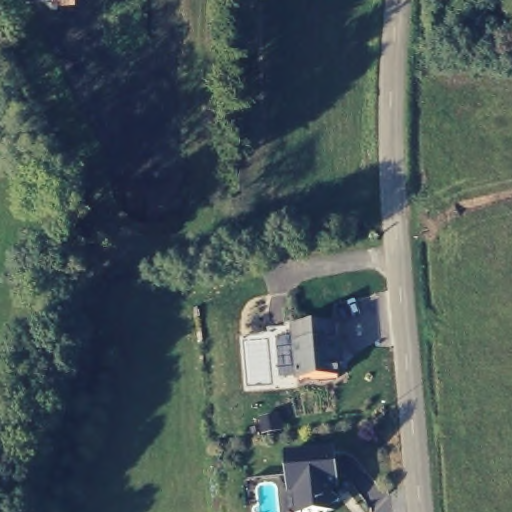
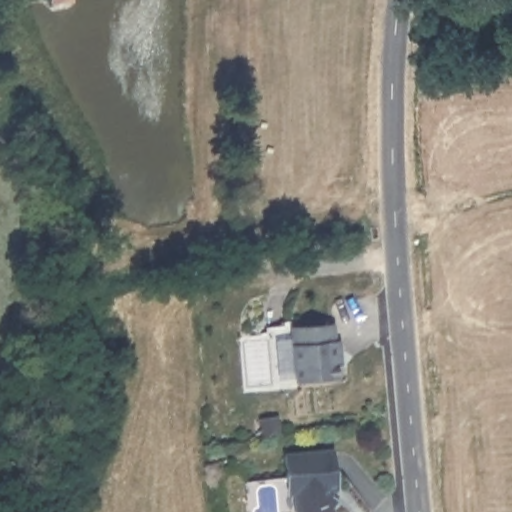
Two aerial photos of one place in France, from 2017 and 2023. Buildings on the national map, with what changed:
unchanged [(292,325),(337,321),(338,337),(343,337),(345,363),(339,365),(340,377),(295,378),(292,325)]
unchanged [(295,492),(288,492),(285,451),(336,446),(340,495),(333,495),(334,512),(295,512),(295,492)]

